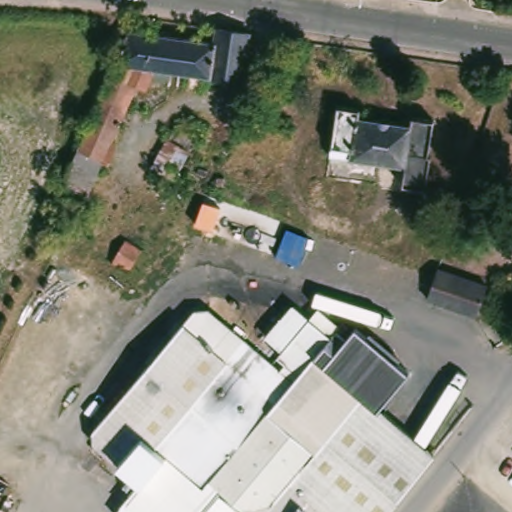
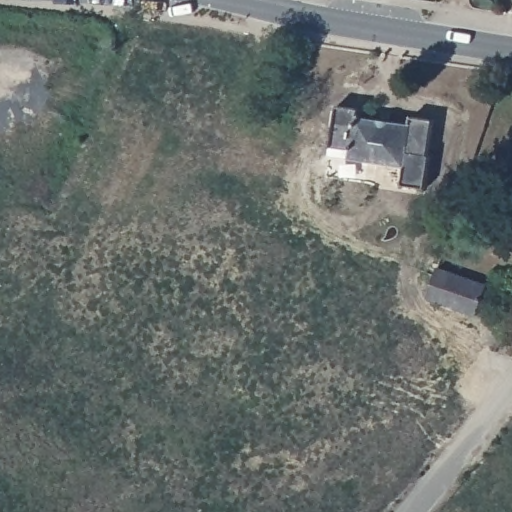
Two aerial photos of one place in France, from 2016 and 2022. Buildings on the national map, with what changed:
demolished [(212,44),(215,30),(249,35),(246,55),(241,55),(238,75),(231,82),(155,71),(146,91),(135,86),(102,161),(101,160),(83,202),(68,195),(62,209),(52,204),(61,182),(95,107),(128,31),(212,44)]
unchanged [(329,148),(336,107),(358,111),(357,119),(408,127),(410,119),(432,123),(427,158),(430,158),(424,191),(400,187),(403,168),(348,160),(327,156),(329,148)]
demolished [(141,250),(128,272),(110,262),(124,240),(141,250)]
unchanged [(475,317),(426,300),(429,291),(434,277),(436,270),(485,287),(475,317)]
demolished [(142,486),(139,483),(92,444),(91,431),(191,312),(206,311),(277,371),(283,364),(275,358),(307,320),(313,313),(334,330),(344,339),(353,328),(407,374),(376,410),(432,457),(398,498),(387,512),(172,512),(142,486)]

